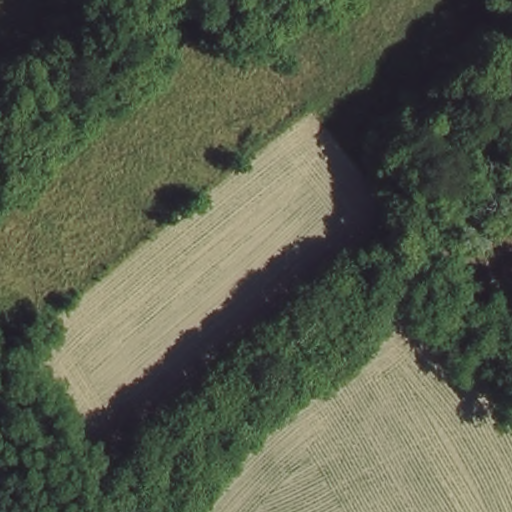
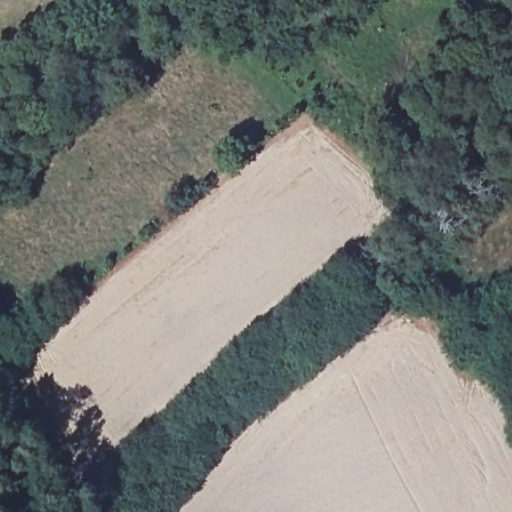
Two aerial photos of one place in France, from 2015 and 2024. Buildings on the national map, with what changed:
unchanged [(25,90),(45,74),(56,86),(37,103),(25,90)]

